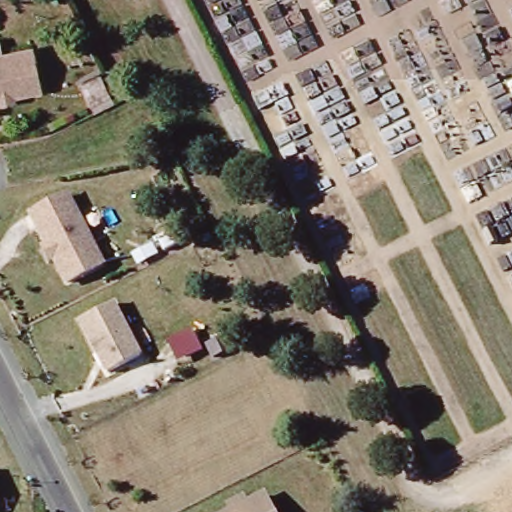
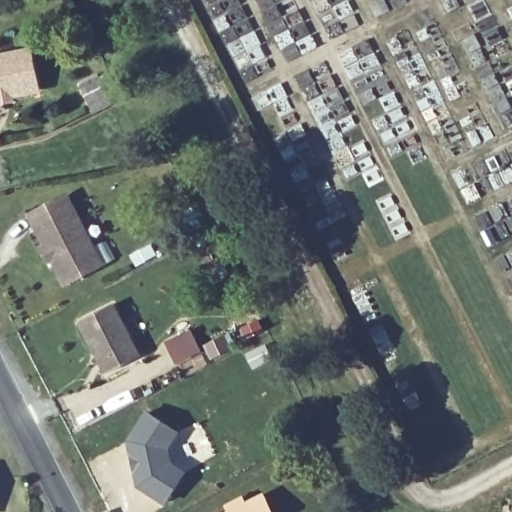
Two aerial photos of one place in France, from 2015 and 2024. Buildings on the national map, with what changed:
unchanged [(50,88),(0,99),(0,58),(41,49),(50,88)]
unchanged [(99,78),(113,103),(96,112),(83,87),(99,78)]
unchanged [(69,194),(105,262),(70,281),(34,213),(69,194)]
unchanged [(85,319),(118,302),(146,354),(113,371),(85,319)]
new [(191,327),(202,350),(180,362),(168,340),(191,327)]
new [(171,449),(174,462),(188,472),(166,504),(138,486),(126,441),(146,410),(181,432),(171,449)]
unchanged [(228,505),(240,498),(244,504),(261,494),(270,512),(228,512),(230,511),(228,505)]

